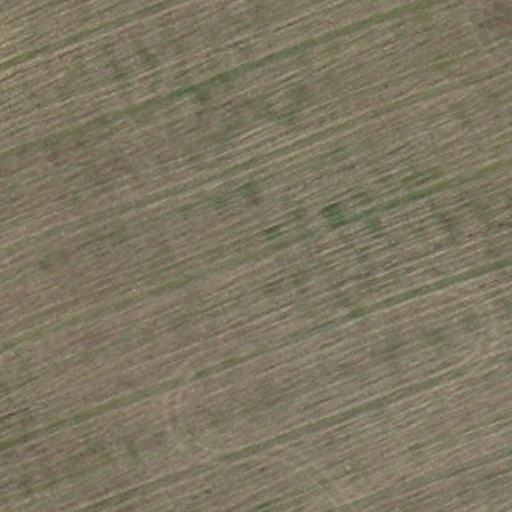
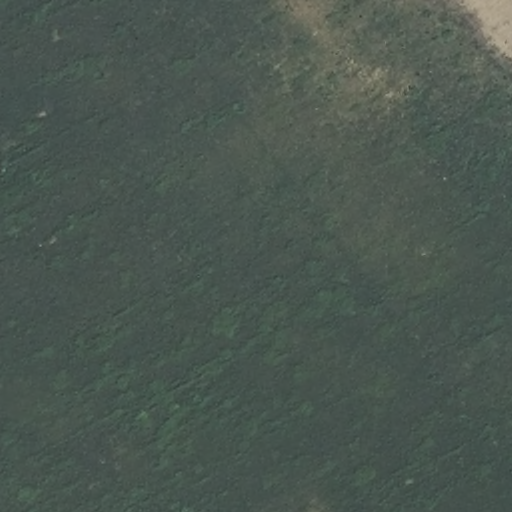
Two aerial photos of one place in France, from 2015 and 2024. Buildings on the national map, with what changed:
[]

